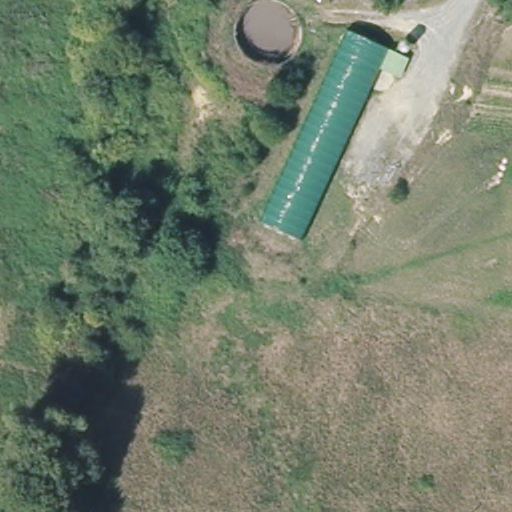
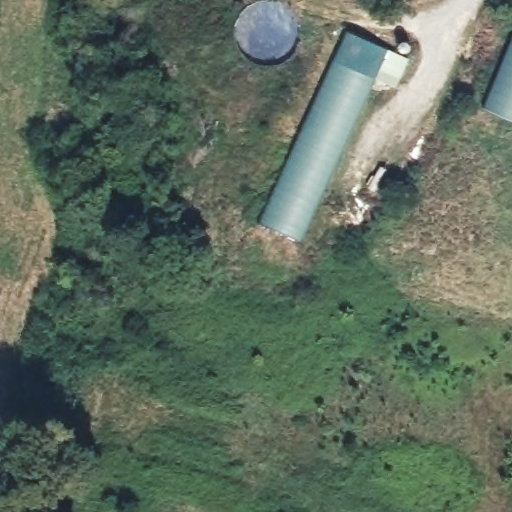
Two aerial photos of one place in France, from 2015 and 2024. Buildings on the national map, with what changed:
unchanged [(411,58),(401,78),(376,66),(295,237),(257,219),(349,30),(411,58)]
new [(512,121),(483,108),(512,41),(512,121)]

